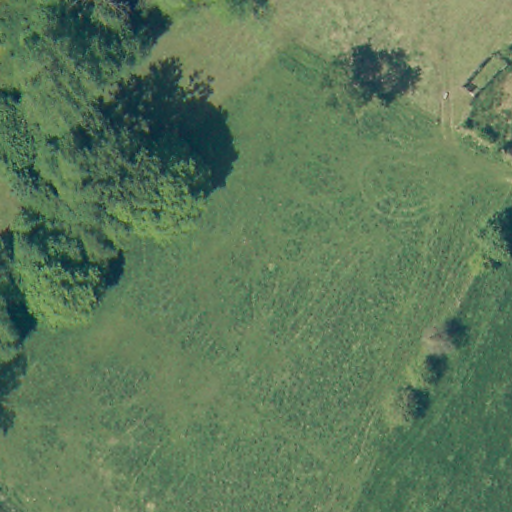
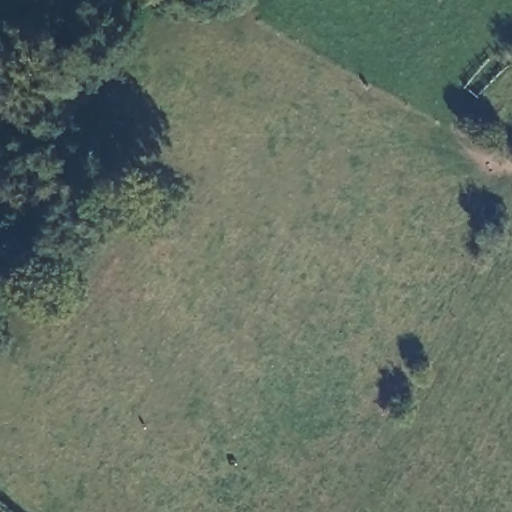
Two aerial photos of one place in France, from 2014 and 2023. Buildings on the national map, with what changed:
unchanged [(482,130),(500,90),(512,95),(512,124),(502,142),(482,130)]

